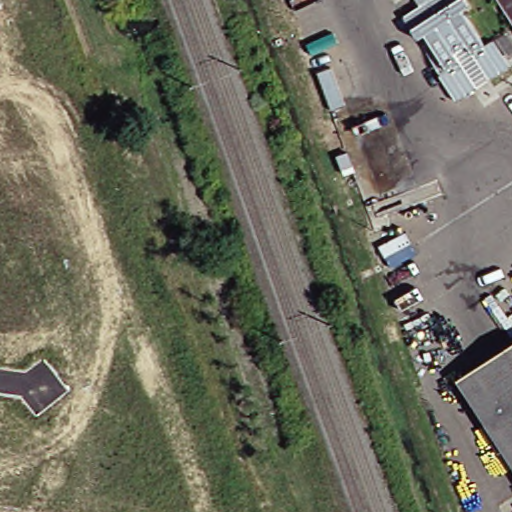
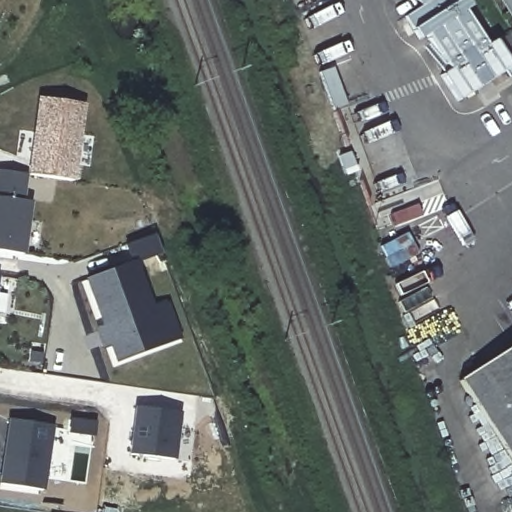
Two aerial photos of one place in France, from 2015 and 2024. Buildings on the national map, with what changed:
unchanged [(435,77),(443,72),(421,37),(414,41),(399,17),(416,7),(412,0),(461,0),(466,7),(459,12),(481,47),(490,42),(506,67),(486,81),(463,46),(451,54),(473,89),(452,102),(435,77)]
unchanged [(491,0),(512,0),(512,32),(491,0)]
new [(45,98),(88,104),(78,181),(34,176),(45,98)]
new [(24,203),(31,204),(24,256),(0,253),(0,172),(27,176),(24,203)]
new [(116,362),(86,282),(133,264),(163,345),(116,362)]
new [(165,307),(177,340),(163,345),(151,312),(165,307)]
new [(111,346),(103,348),(96,331),(104,328),(111,346)]
unchanged [(454,381),(512,342),(512,471),(454,381)]
new [(141,407),(184,412),(178,460),(135,455),(141,407)]
new [(44,493),(0,487),(0,473),(8,420),(52,427),(44,493)]

